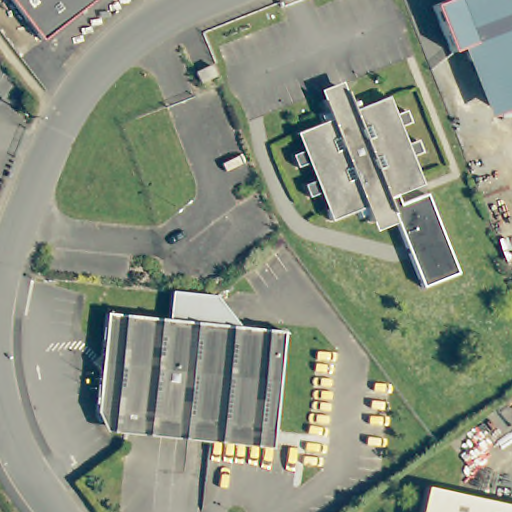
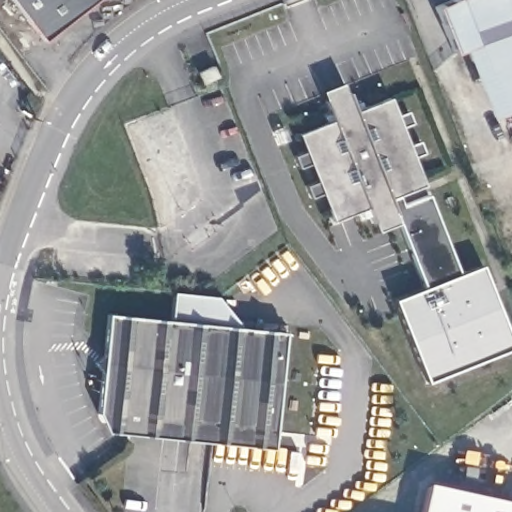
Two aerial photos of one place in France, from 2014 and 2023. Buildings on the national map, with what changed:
unchanged [(44,38),(15,0),(93,0),(44,38)]
unchanged [(512,108),(503,112),(475,43),(453,52),(434,5),(446,0),(512,0),(512,108)]
unchanged [(217,77),(202,84),(197,74),(213,67),(217,77)]
unchanged [(408,110),(413,121),(398,127),(406,145),(420,140),(424,151),(410,157),(417,174),(419,173),(425,187),(399,197),(402,205),(429,195),(460,274),(425,288),(396,214),(373,224),(370,216),(363,219),(360,211),(336,220),(332,209),(334,208),(327,190),(312,196),(307,184),(322,178),(315,161),(301,167),(296,154),(310,148),(304,132),(328,123),(325,115),(332,112),(326,99),(350,90),(355,103),(362,100),(364,108),(386,99),(394,116),(408,110)]
new [(425,288),(460,274),(481,266),(512,346),(512,348),(426,382),(394,299),(425,288)]
unchanged [(218,312),(241,342),(171,336),(174,307),(218,312)]
unchanged [(287,346),(278,446),(100,429),(103,390),(96,381),(104,374),(108,330),(171,336),(241,342),(287,346)]
unchanged [(512,506),(512,512),(421,512),(427,487),(512,506)]

